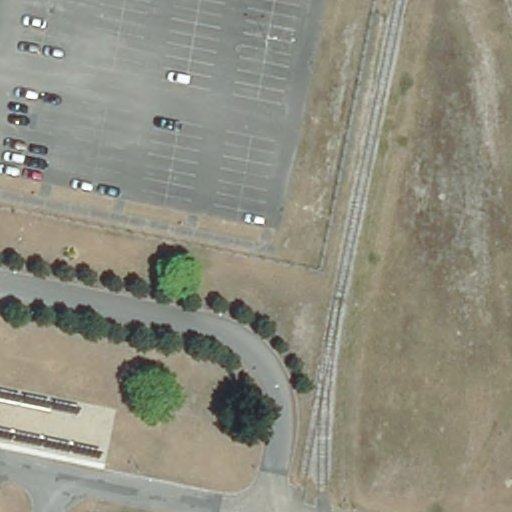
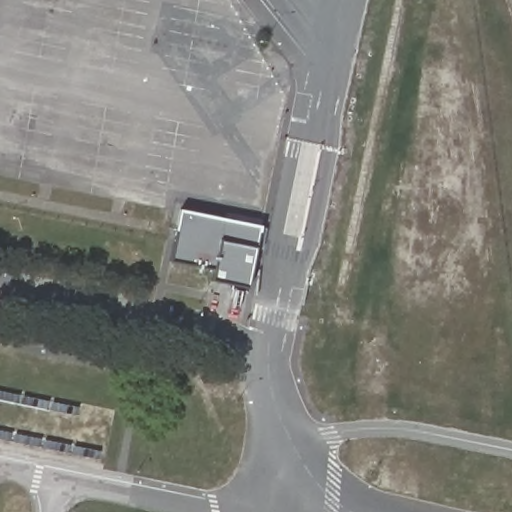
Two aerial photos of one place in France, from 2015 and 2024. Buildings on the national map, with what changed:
new [(172,261),(181,212),(260,227),(248,287),(212,280),(214,269),(172,261)]

